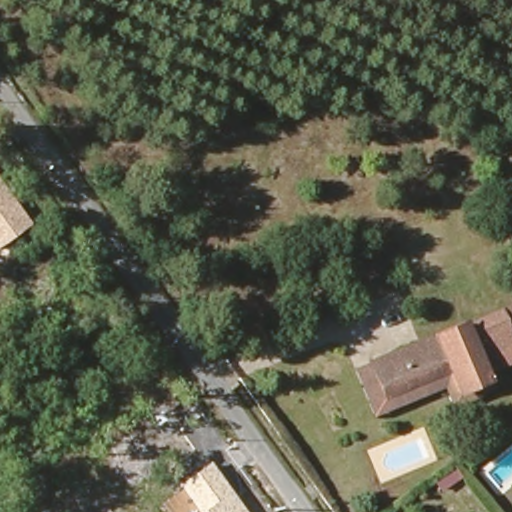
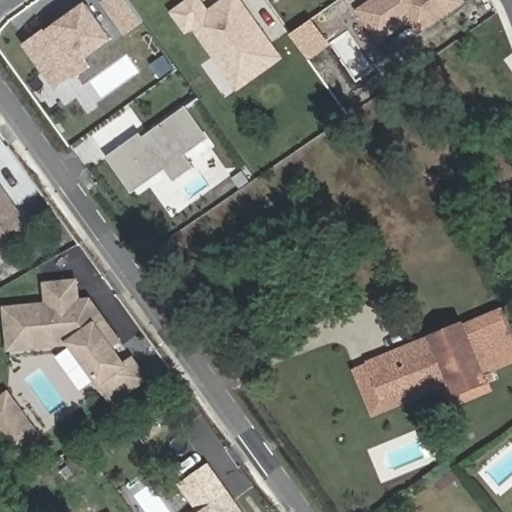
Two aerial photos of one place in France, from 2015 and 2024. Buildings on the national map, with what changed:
new [(126,0),(142,21),(125,33),(103,2),(106,0),(126,0)]
new [(201,0),(210,13),(227,0),(241,0),(272,43),(230,73),(196,25),(189,30),(176,11),(192,0),(201,0)]
new [(422,30),(413,18),(382,40),(362,10),(377,0),(462,0),(463,1),(422,30)]
new [(50,33),(61,25),(89,4),(114,39),(86,59),(92,66),(79,76),(77,74),(59,86),(29,45),(48,31),(50,33)]
new [(176,182),(167,170),(149,183),(135,193),(109,157),(142,133),(145,137),(184,109),(207,141),(187,155),(196,168),(176,182)]
unchanged [(31,223),(0,246),(0,179),(31,223)]
new [(114,406),(101,387),(70,345),(8,351),(4,306),(46,302),(44,281),(80,278),(82,298),(92,297),(107,317),(125,341),(117,346),(127,361),(135,355),(151,379),(114,406)]
unchanged [(497,314),(511,308),(512,311),(512,340),(508,342),(509,344),(473,359),(460,327),(496,312),(497,314)]
unchanged [(460,326),(460,327),(473,359),(482,381),(455,393),(446,369),(383,395),(370,362),(460,326)]
new [(65,365),(77,357),(88,372),(77,381),(65,365)]
unchanged [(487,391),(449,406),(440,383),(375,409),(357,367),(370,362),(383,395),(446,369),(455,393),(482,381),(487,391)]
new [(45,437),(18,456),(0,431),(0,396),(10,390),(45,437)]
unchanged [(246,512),(201,512),(181,485),(211,463),(246,512)]

